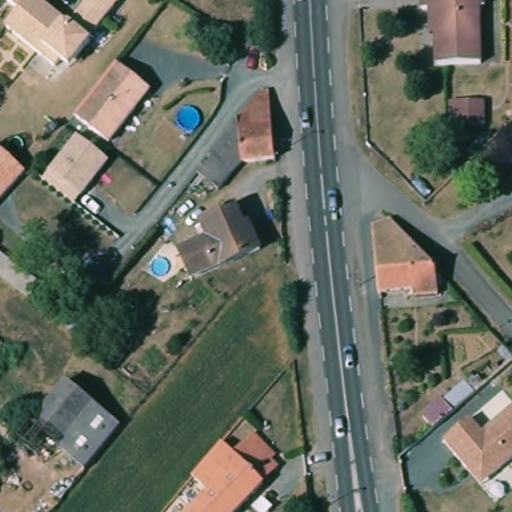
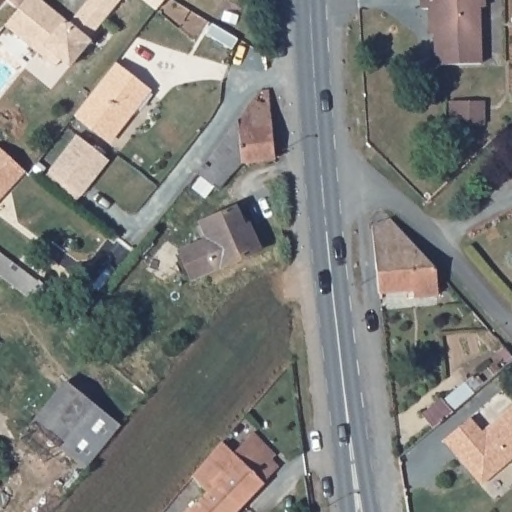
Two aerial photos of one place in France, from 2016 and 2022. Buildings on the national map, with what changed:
unchanged [(0,2),(0,0),(1,0),(0,2)]
unchanged [(69,20),(86,0),(122,0),(93,39),(71,64),(44,53),(6,25),(21,9),(6,0),(43,0),(69,20)]
unchanged [(486,5),(482,5),(482,61),(435,62),(435,7),(423,7),(423,0),(486,0),(486,5)]
unchanged [(136,76),(95,127),(78,112),(111,71),(119,61),(136,76)]
unchanged [(153,89),(112,140),(95,127),(136,76),(153,89)]
unchanged [(275,116),(278,159),(246,159),(231,177),(215,154),(261,94),(273,92),(275,116)]
unchanged [(475,101),(475,123),(457,124),(457,102),(475,101)]
unchanged [(108,160),(80,196),(47,170),(75,133),(108,160)]
unchanged [(26,170),(0,199),(0,146),(26,170)]
unchanged [(215,190),(198,173),(215,154),(230,174),(215,190)]
unchanged [(177,252),(206,236),(201,219),(236,205),(261,256),(192,288),(177,252)]
unchanged [(377,234),(393,229),(437,278),(417,280),(419,299),(384,302),(377,234)]
unchanged [(67,336),(55,326),(24,300),(0,281),(0,263),(32,290),(75,325),(67,336)]
unchanged [(500,371),(495,364),(499,360),(505,367),(500,371)]
unchanged [(60,445),(48,459),(21,436),(68,381),(121,425),(98,456),(89,467),(60,445)]
unchanged [(420,414),(440,398),(451,413),(432,429),(420,414)]
unchanged [(447,439),(473,419),(483,431),(512,407),(512,461),(482,485),(447,439)]
unchanged [(255,428),(277,450),(271,456),(278,463),(265,478),(231,512),(185,512),(208,487),(194,473),(222,438),(235,449),(249,435),(255,428)]

